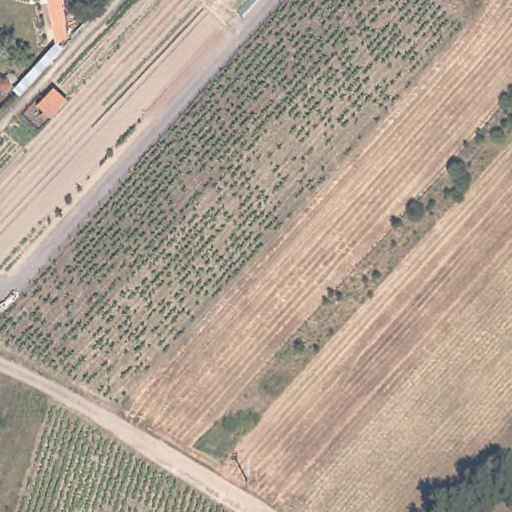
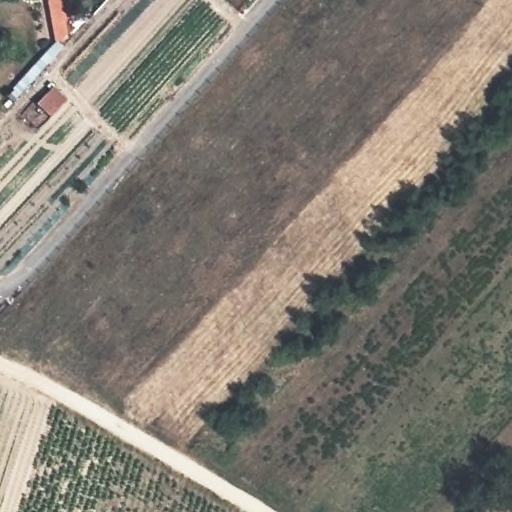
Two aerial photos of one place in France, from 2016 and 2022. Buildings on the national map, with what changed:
unchanged [(50,0),(65,0),(71,36),(58,46),(50,0)]

